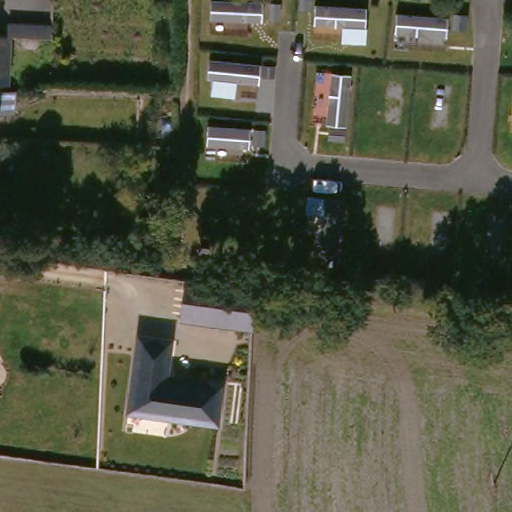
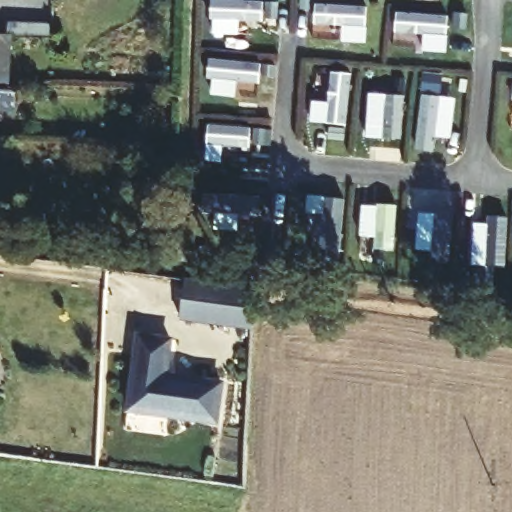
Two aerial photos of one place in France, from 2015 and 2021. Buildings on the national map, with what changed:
unchanged [(214,0),(256,0),(265,1),(263,20),(214,14),(214,0)]
unchanged [(365,28),(312,24),(312,2),(368,9),(365,28)]
unchanged [(447,37),(389,31),(391,11),(447,19),(447,37)]
unchanged [(51,29),(51,40),(9,37),(10,25),(51,29)]
unchanged [(1,90),(0,89),(0,37),(5,37),(1,90)]
unchanged [(11,96),(9,119),(0,118),(0,95),(1,95),(11,96)]
unchanged [(265,236),(293,242),(288,270),(243,263),(250,219),(266,219),(265,236)]
unchanged [(260,296),(257,337),(184,327),(190,287),(260,296)]
unchanged [(166,337),(161,373),(216,381),(211,420),(123,407),(134,333),(166,337)]

